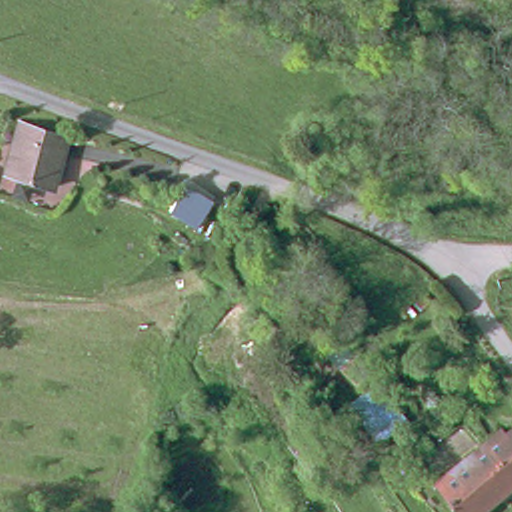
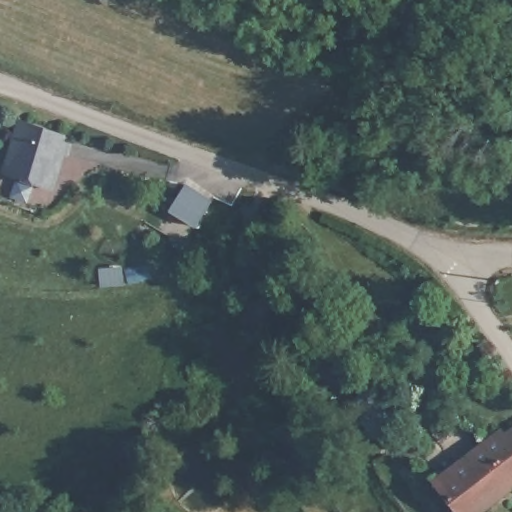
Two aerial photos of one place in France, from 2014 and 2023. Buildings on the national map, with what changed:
unchanged [(64,139),(46,189),(0,174),(17,125),(64,139)]
unchanged [(371,441),(345,405),(370,378),(407,424),(371,441)]
unchanged [(512,486),(478,512),(464,512),(438,478),(509,424),(512,428),(512,486)]

